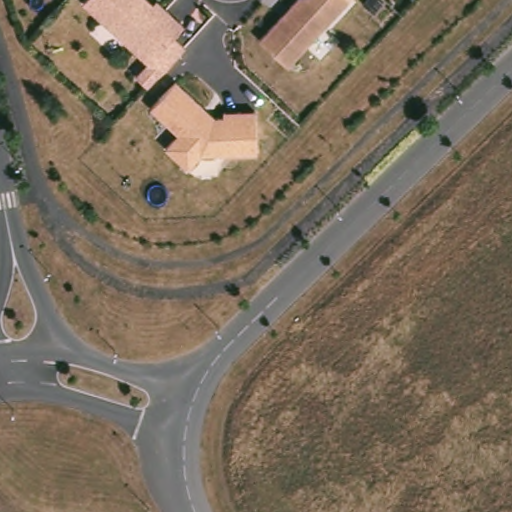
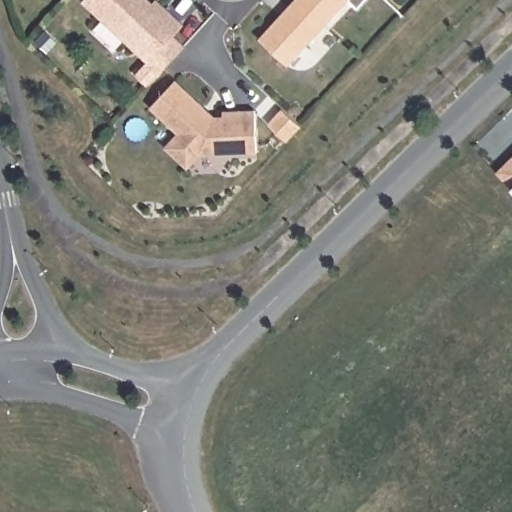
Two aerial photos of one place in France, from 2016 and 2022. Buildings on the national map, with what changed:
unchanged [(157,0),(184,25),(148,62),(83,2),(84,0),(149,0),(153,4),(156,0),(157,0)]
unchanged [(277,15),(285,6),(290,0),(343,0),(283,66),(254,39),(277,15)]
unchanged [(178,163),(161,147),(174,133),(146,107),(171,80),(198,106),(210,117),(219,116),(218,111),(251,110),(252,151),(196,154),(183,168),(178,163)]
new [(512,158),(512,189),(497,174),(512,158)]

